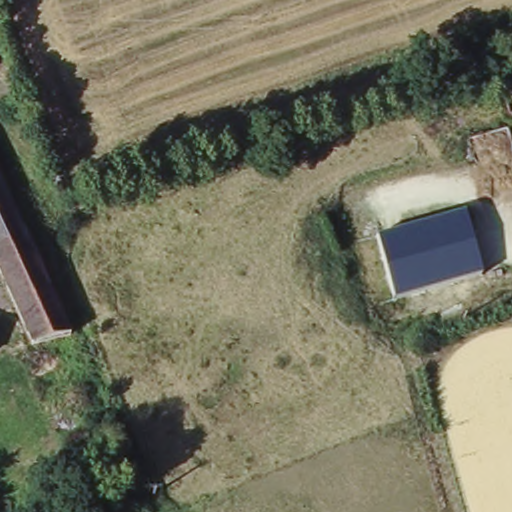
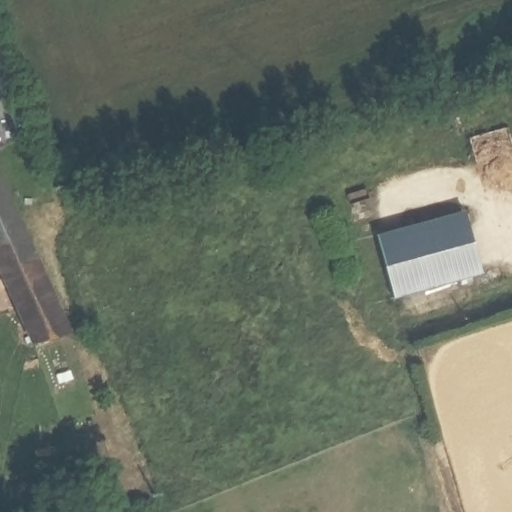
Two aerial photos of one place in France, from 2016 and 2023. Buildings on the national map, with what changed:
unchanged [(0,266),(0,165),(24,217),(35,240),(43,235),(53,257),(42,264),(78,338),(36,350),(0,266)]
unchanged [(464,212),(481,273),(394,297),(377,237),(464,212)]

